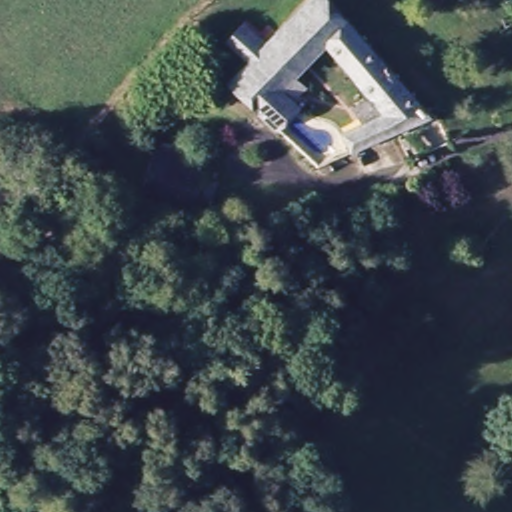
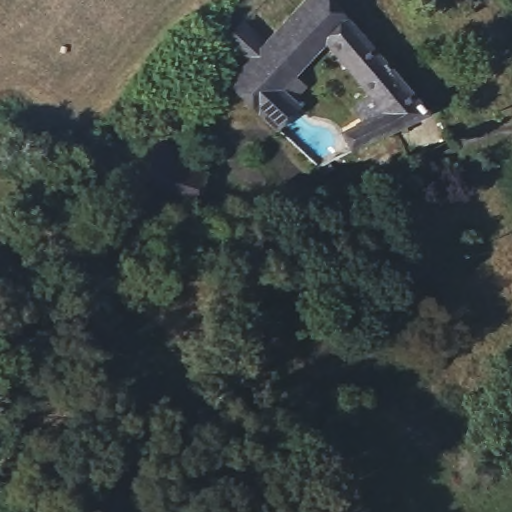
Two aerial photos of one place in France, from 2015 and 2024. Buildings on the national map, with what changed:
unchanged [(366,93),(323,37),(292,73),(303,83),(291,98),(298,105),(277,129),(231,82),(251,59),(232,40),(244,25),(264,44),(301,0),(337,0),(420,117),(397,132),(380,142),(358,156),(344,134),(363,122),(351,105),(366,93)]
unchanged [(167,64),(181,77),(168,94),(155,82),(167,64)]
unchanged [(200,201),(149,194),(152,163),(155,140),(180,144),(177,167),(202,171),(200,201)]

